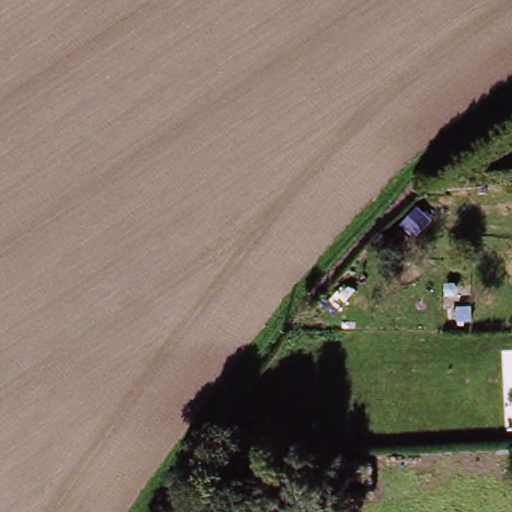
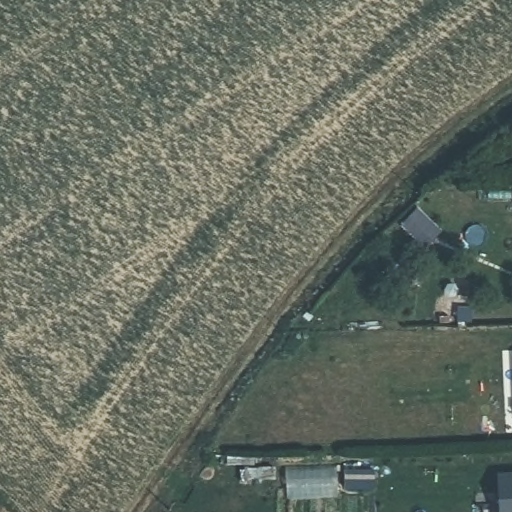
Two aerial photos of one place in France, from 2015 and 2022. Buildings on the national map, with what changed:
new [(512,512),(499,512),(499,473),(512,472),(512,512)]

